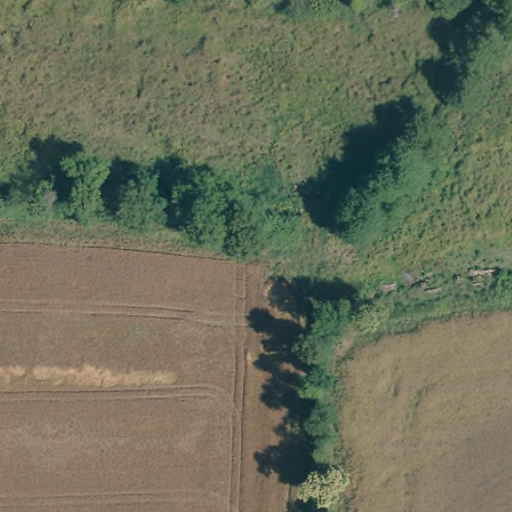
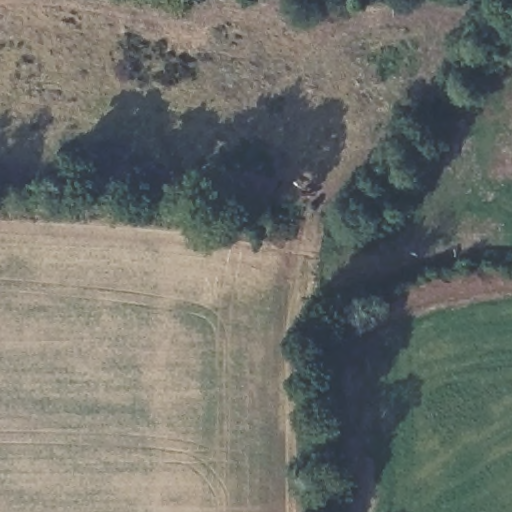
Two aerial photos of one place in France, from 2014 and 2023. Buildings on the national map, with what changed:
[]

